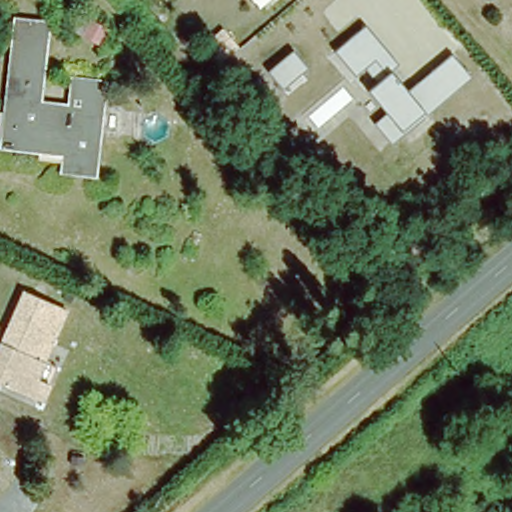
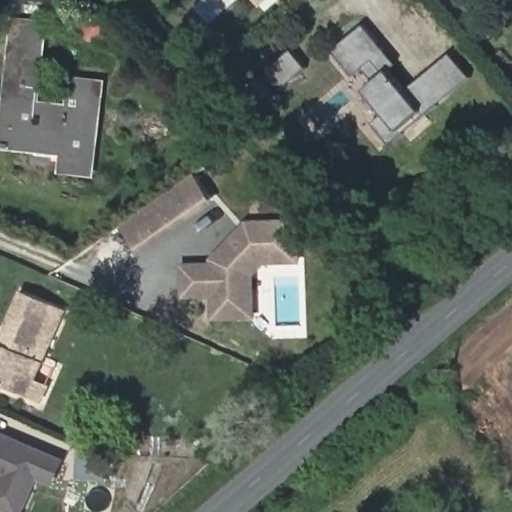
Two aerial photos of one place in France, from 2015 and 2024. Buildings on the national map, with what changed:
unchanged [(89,13),(71,3),(73,0),(95,0),(96,0),(89,13)]
unchanged [(61,173),(62,163),(64,145),(31,143),(30,148),(4,145),(15,17),(44,20),(35,102),(69,104),(71,80),(102,82),(94,166),(94,176),(61,173)]
unchanged [(355,74),(335,50),(365,25),(399,65),(392,71),(410,92),(452,55),(472,78),(394,143),(375,121),(388,112),(368,88),(378,80),(366,66),(355,74)]
unchanged [(307,69),(283,88),(270,71),(293,51),(307,69)]
new [(141,255),(120,225),(195,175),(217,204),(141,255)]
new [(266,265),(255,275),(257,318),(212,320),(211,297),(181,300),(180,263),(210,263),(210,260),(246,222),(297,220),(300,263),(266,265)]
unchanged [(40,401),(27,395),(0,383),(0,341),(23,290),(65,309),(42,360),(56,366),(40,401)]
new [(39,480),(24,512),(9,512),(0,508),(0,430),(65,458),(55,487),(39,480)]

